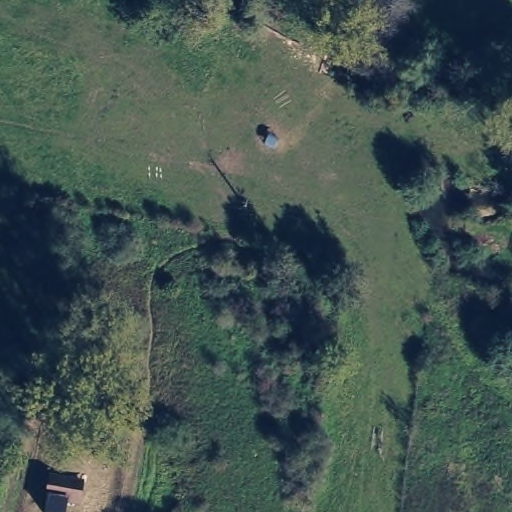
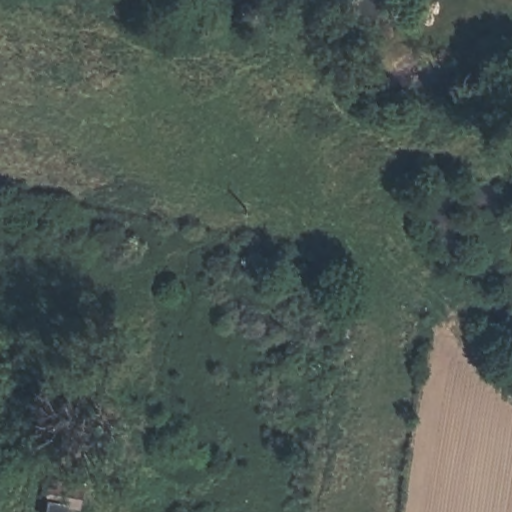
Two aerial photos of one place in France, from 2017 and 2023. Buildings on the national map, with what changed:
unchanged [(50,471),(77,471),(77,492),(65,494),(65,508),(48,508),(50,471)]

